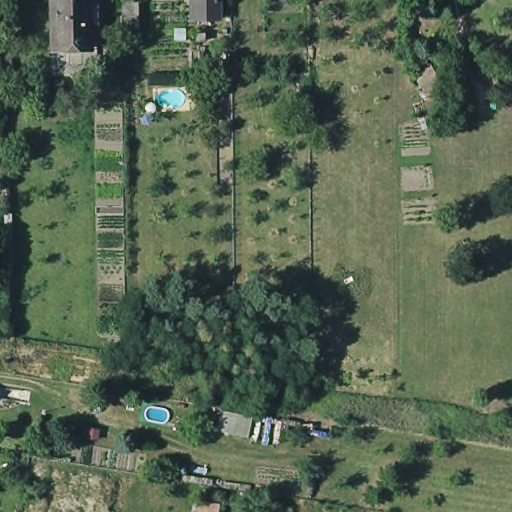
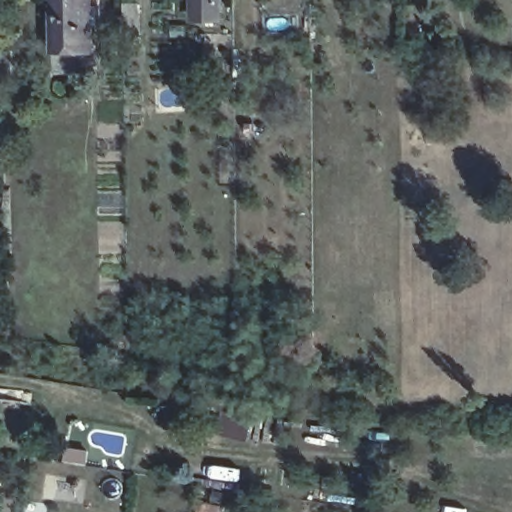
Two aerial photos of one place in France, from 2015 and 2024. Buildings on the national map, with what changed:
unchanged [(54,52),(53,46),(53,0),(92,0),(93,45),(93,52),(54,52)]
unchanged [(140,28),(126,28),(126,0),(140,0),(140,28)]
unchanged [(188,0),(226,0),(227,25),(190,22),(188,0)]

